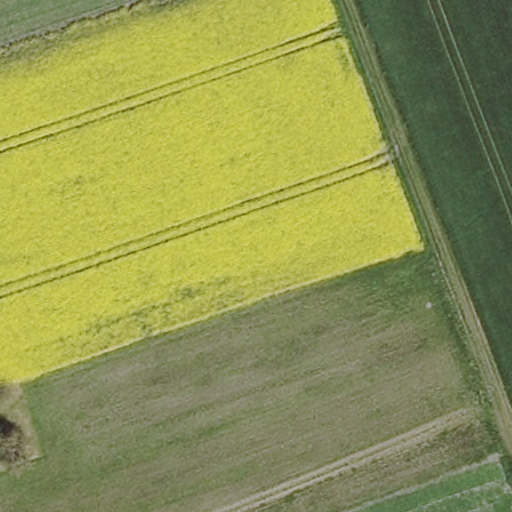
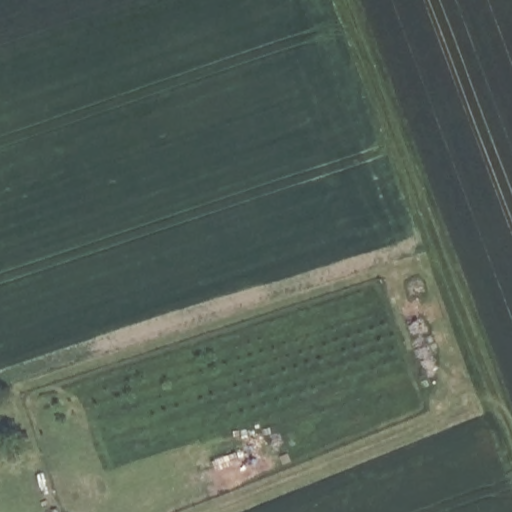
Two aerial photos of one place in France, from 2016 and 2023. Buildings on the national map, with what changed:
[]

